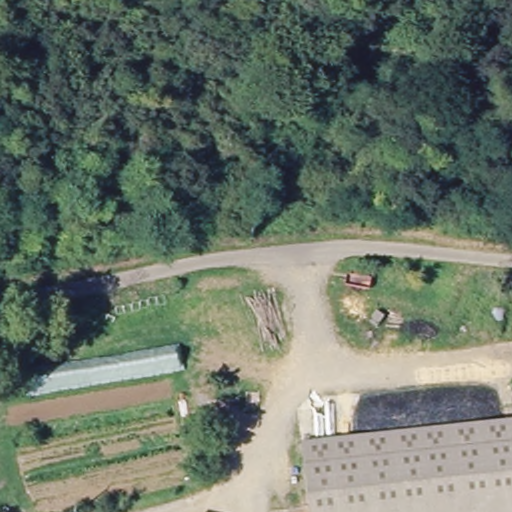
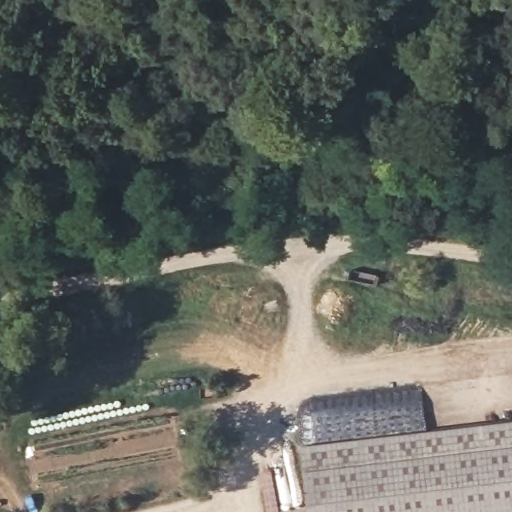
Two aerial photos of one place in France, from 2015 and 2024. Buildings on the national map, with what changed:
unchanged [(313,512),(305,438),(512,418),(512,509),(483,512),(313,512)]

